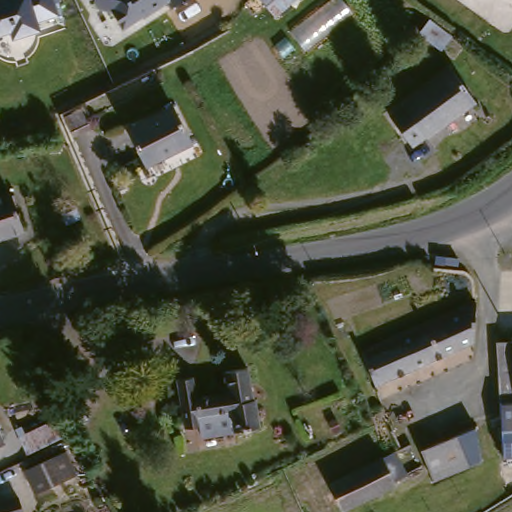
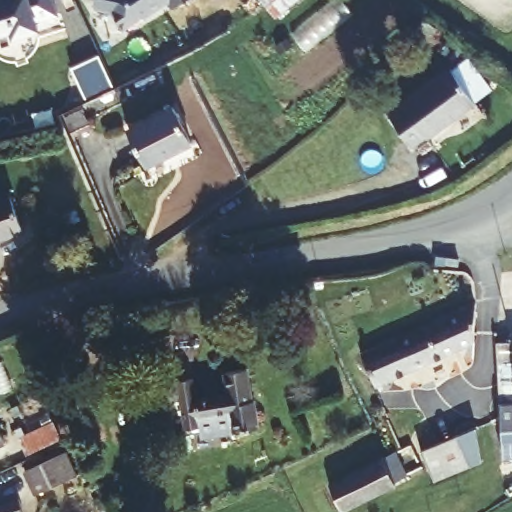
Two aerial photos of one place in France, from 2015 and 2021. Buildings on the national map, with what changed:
unchanged [(59,16),(38,21),(41,30),(12,41),(9,33),(0,35),(0,0),(54,0),(59,16)]
unchanged [(94,0),(182,0),(171,7),(167,1),(143,16),(141,14),(122,26),(111,9),(97,6),(94,0)]
unchanged [(245,0),(279,0),(255,25),(239,7),(245,0)]
unchanged [(452,74),(477,108),(427,144),(424,141),(411,152),(390,122),(406,112),(404,108),(452,74)]
unchanged [(177,107),(198,148),(149,170),(130,129),(177,107)]
unchanged [(73,108),(81,126),(64,135),(56,116),(73,108)]
unchanged [(20,235),(0,242),(0,198),(8,196),(20,235)]
unchanged [(439,275),(463,277),(461,292),(436,290),(439,275)]
unchanged [(364,359),(474,308),(477,345),(378,391),(364,359)]
unchanged [(499,344),(512,343),(512,403),(502,403),(499,344)]
unchanged [(210,438),(198,440),(196,430),(182,432),(173,385),(188,383),(191,398),(220,394),(218,378),(244,372),(257,430),(227,435),(210,438)]
unchanged [(512,403),(512,458),(504,458),(502,403),(512,403)]
unchanged [(11,434),(19,430),(23,437),(49,425),(57,441),(23,458),(11,434)]
unchanged [(0,449),(0,435),(5,447),(0,449)]
unchanged [(458,440),(473,469),(433,485),(420,455),(458,440)]
unchanged [(330,496),(325,484),(395,454),(407,478),(393,483),(396,489),(344,512),(319,512),(315,502),(330,496)]
unchanged [(21,473),(60,459),(68,480),(69,484),(31,498),(21,473)]
unchanged [(26,512),(0,512),(0,509),(23,502),(26,512)]

